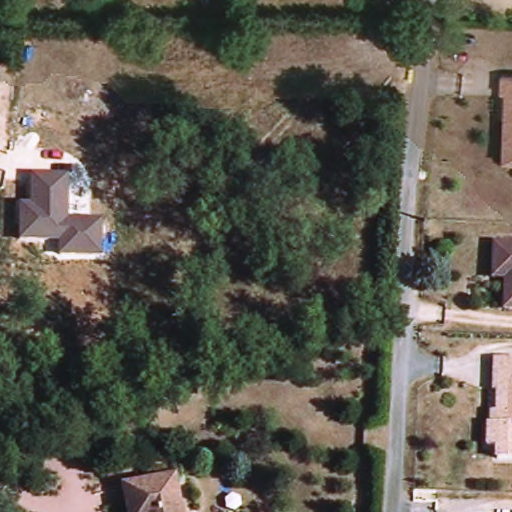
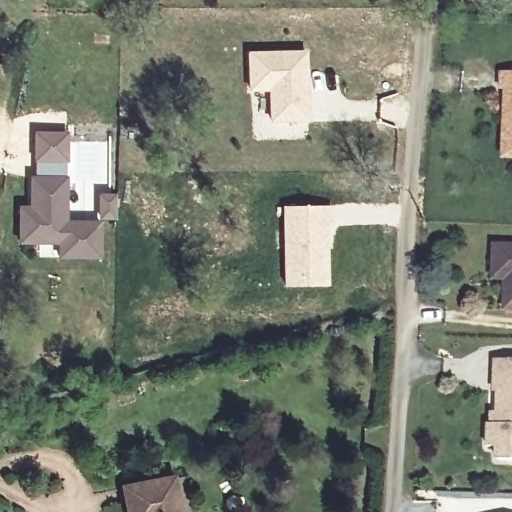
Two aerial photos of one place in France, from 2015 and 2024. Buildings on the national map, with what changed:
new [(246,50),(309,49),(309,121),(268,122),(266,91),(246,91),(246,50)]
unchanged [(505,98),(505,90),(500,90),(500,72),(512,73),(512,106),(505,98)]
unchanged [(502,157),(503,117),(512,110),(512,158),(502,157)]
new [(34,130),(68,130),(67,164),(33,162),(34,130)]
unchanged [(68,177),(68,221),(102,222),(102,258),(58,257),(58,244),(21,242),(22,206),(31,206),(31,178),(68,177)]
new [(334,205),(334,250),(330,250),(330,286),(281,286),(280,205),(334,205)]
unchanged [(512,246),(512,311),(504,310),(505,290),(508,286),(508,280),(492,279),(493,245),(512,246)]
unchanged [(497,414),(499,395),(490,394),(488,359),(512,359),(512,460),(496,460),(497,447),(487,446),(487,424),(490,425),(491,413),(497,414)]
unchanged [(129,512),(124,488),(172,478),(179,512),(129,512)]

